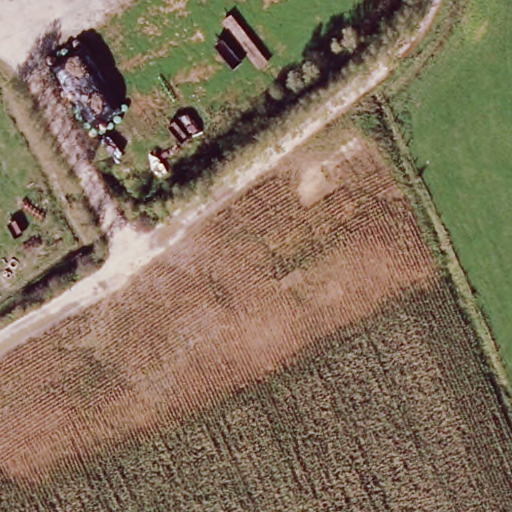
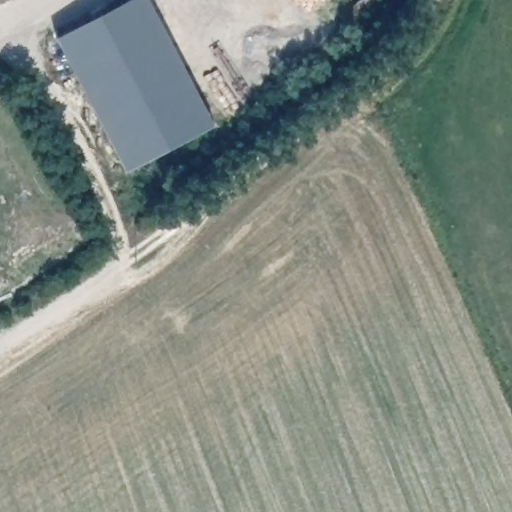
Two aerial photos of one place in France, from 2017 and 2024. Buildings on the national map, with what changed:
new [(130,0),(148,0),(212,122),(124,167),(57,37),(130,0)]

